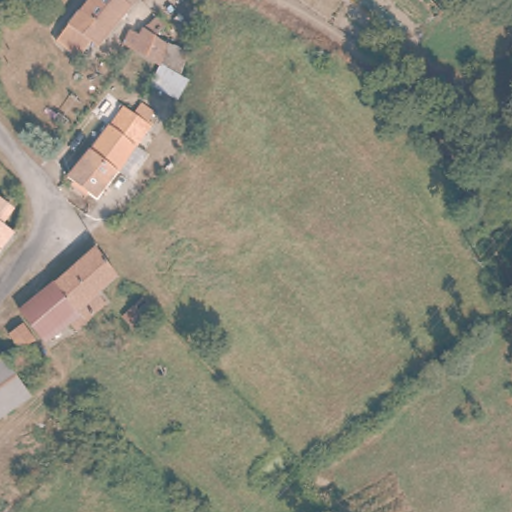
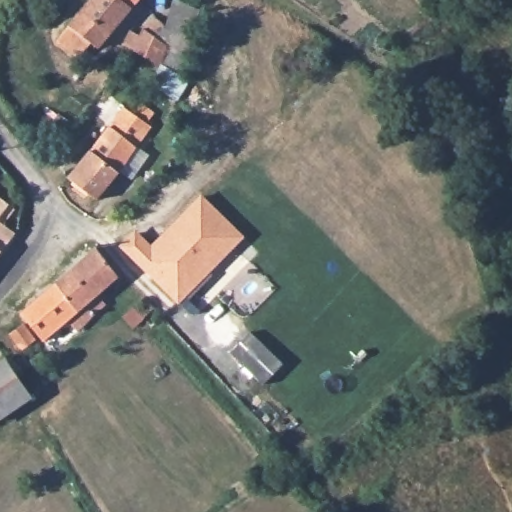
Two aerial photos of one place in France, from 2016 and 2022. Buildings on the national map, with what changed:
unchanged [(56,42),(66,29),(87,0),(129,0),(123,8),(92,48),(84,42),(74,56),(56,42)]
unchanged [(173,39),(159,76),(131,58),(123,53),(131,40),(137,44),(148,25),(173,39)]
unchanged [(129,108),(139,114),(148,103),(158,112),(152,119),(152,127),(89,204),(76,194),(82,186),(73,178),(129,108)]
unchanged [(6,199),(0,208),(0,194),(6,199)]
new [(177,304),(117,247),(134,229),(149,245),(199,194),(242,237),(177,304)]
unchanged [(16,225),(0,247),(0,213),(16,225)]
unchanged [(105,265),(93,277),(109,296),(97,306),(60,271),(84,245),(105,265)]
unchanged [(21,310),(60,271),(97,306),(75,327),(68,319),(47,338),(30,319),(21,310)]
unchanged [(146,307),(135,319),(124,308),(136,297),(146,307)]
unchanged [(30,369),(39,382),(28,390),(32,396),(0,417),(0,360),(16,349),(30,369)]

